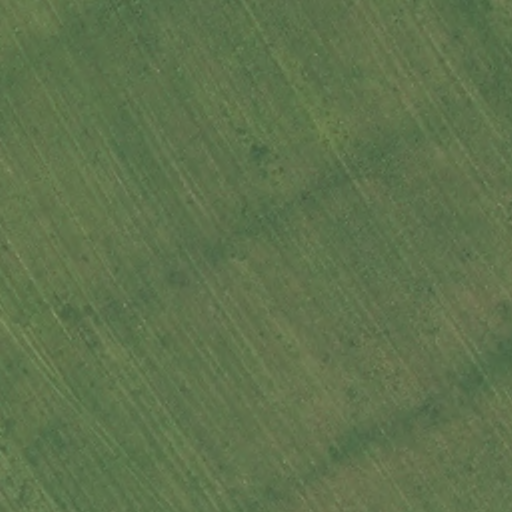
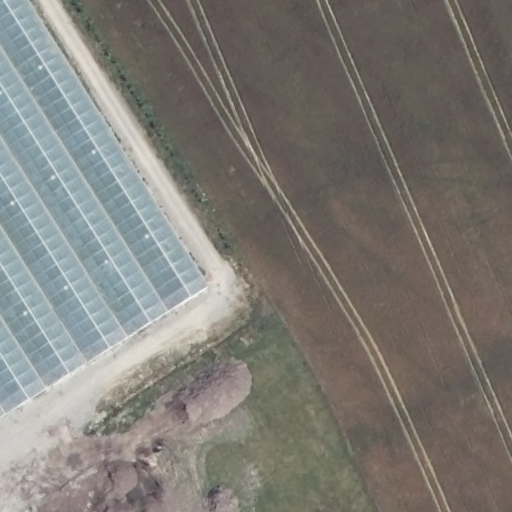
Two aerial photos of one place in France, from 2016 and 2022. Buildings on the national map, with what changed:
new [(209,289),(0,419),(0,0),(26,0),(209,289)]

